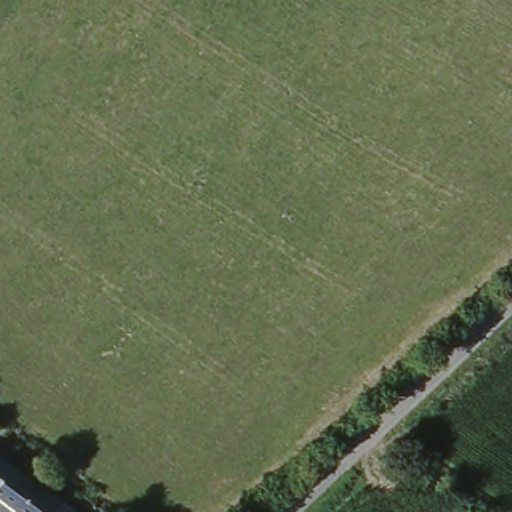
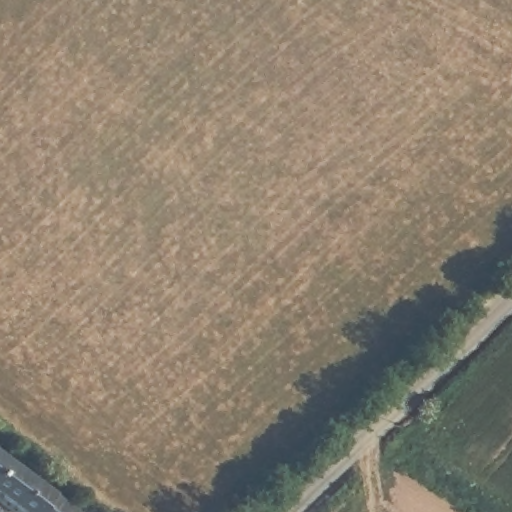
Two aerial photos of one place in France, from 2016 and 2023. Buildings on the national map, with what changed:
unchanged [(0,461),(73,512),(20,512),(0,498),(0,461)]

